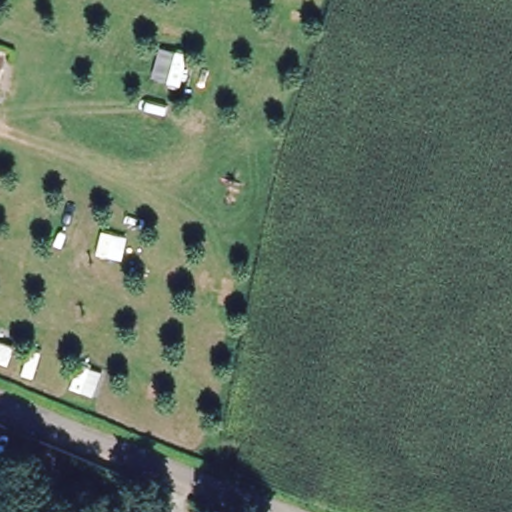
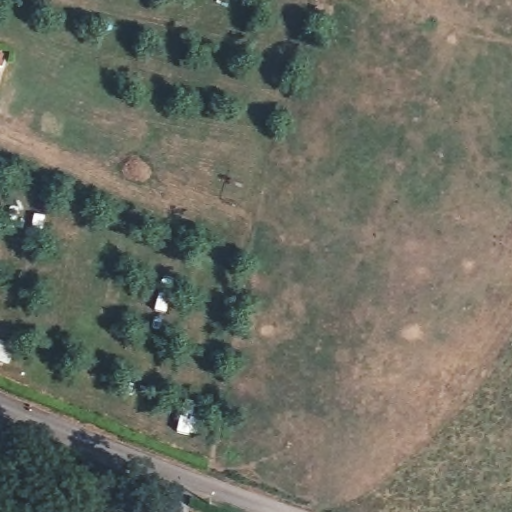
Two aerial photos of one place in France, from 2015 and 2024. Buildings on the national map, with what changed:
[]

